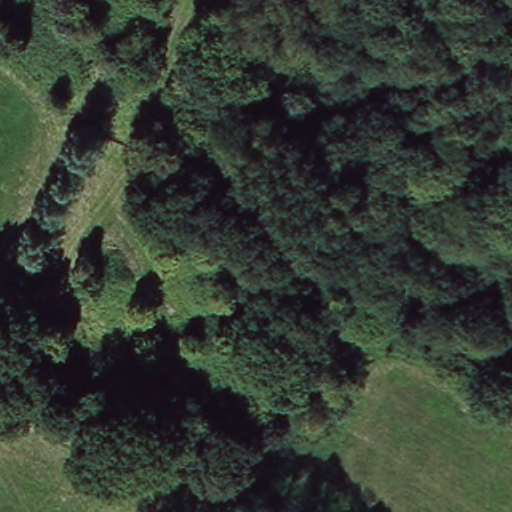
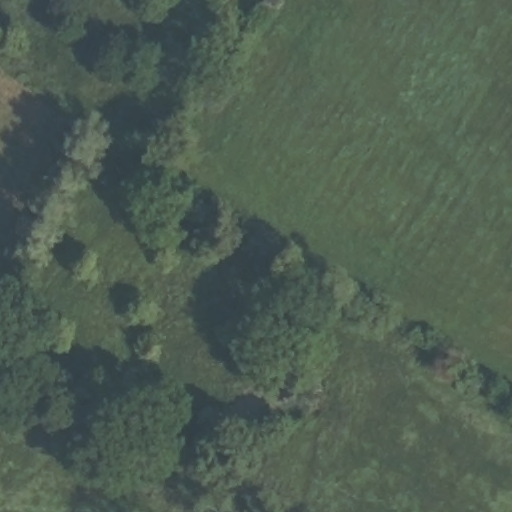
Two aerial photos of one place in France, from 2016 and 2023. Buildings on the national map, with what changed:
unchanged [(150,40),(142,54),(92,22),(99,10),(150,40)]

